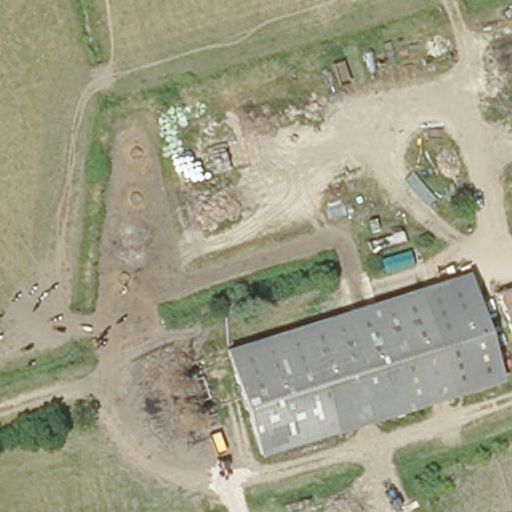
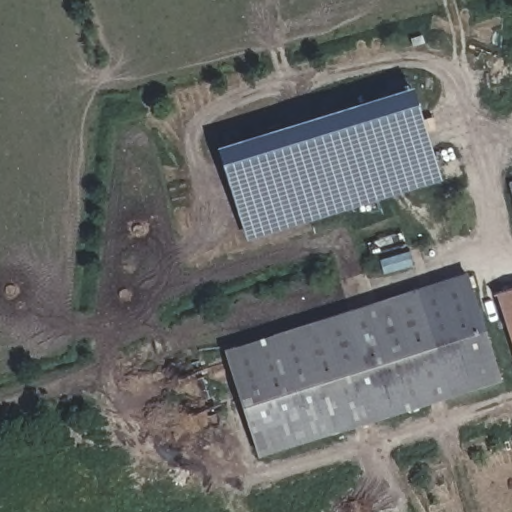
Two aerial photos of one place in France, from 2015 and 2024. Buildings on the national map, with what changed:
new [(221,149),(418,87),(445,179),(251,241),(221,149)]
unchanged [(512,193),(509,181),(512,180),(512,193)]
unchanged [(259,455),(228,346),(472,271),(504,379),(259,455)]
unchanged [(512,292),(512,330),(501,295),(512,292)]

